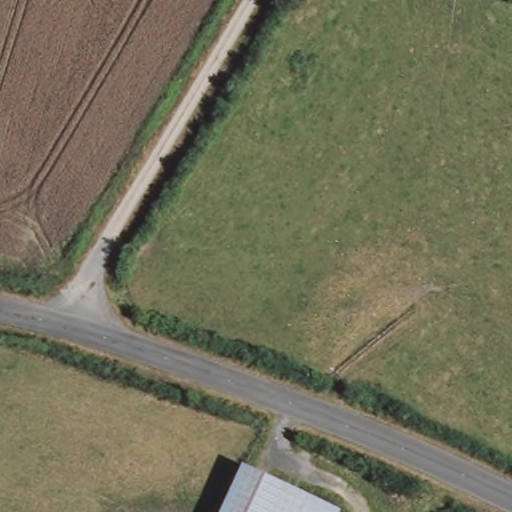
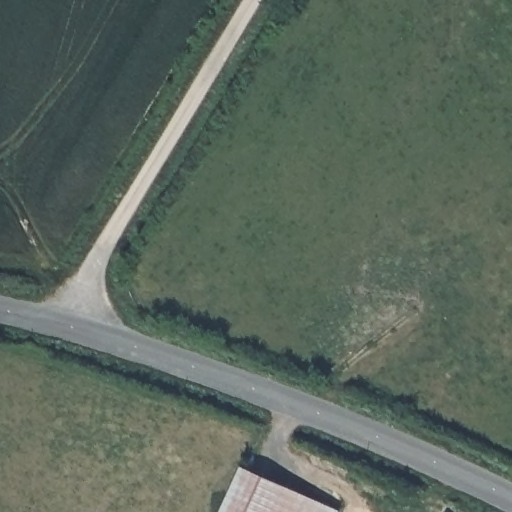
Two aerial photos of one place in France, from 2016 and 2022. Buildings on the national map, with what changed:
unchanged [(221,512),(244,466),(336,512),(221,512)]

